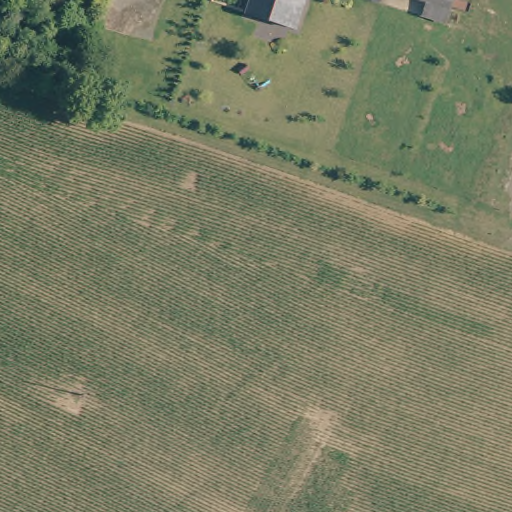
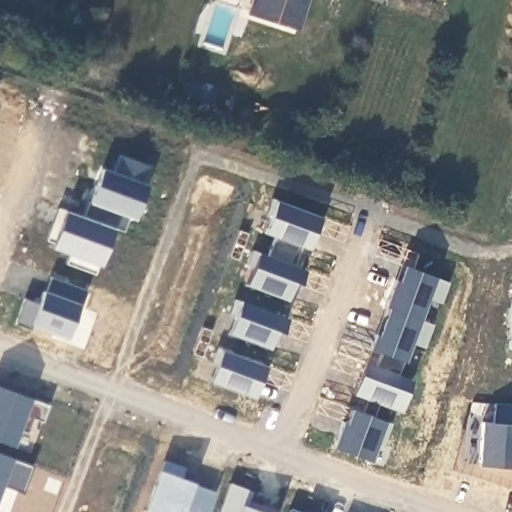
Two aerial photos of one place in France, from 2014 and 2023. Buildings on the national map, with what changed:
unchanged [(296,26),(249,10),(252,0),(305,0),(296,26)]
demolished [(441,2),(434,0),(442,0),(441,2)]
new [(88,200),(92,202),(96,190),(94,190),(101,169),(114,172),(120,155),(150,166),(144,184),(147,185),(135,219),(129,217),(124,232),(83,217),(88,200)]
new [(271,215),(267,214),(272,199),(325,218),(319,234),(313,231),(306,249),(302,247),(294,266),(268,256),(274,237),(265,234),(271,215)]
new [(254,268),(247,265),(253,250),(268,256),(294,266),(305,270),(300,285),(293,282),(287,300),(247,286),(254,268)]
new [(401,266),(401,265),(448,282),(441,303),(427,298),(419,320),(385,307),(395,280),(401,266)]
new [(24,298),(39,304),(43,291),(45,292),(51,276),(88,290),(81,307),(79,306),(67,338),(32,325),(30,330),(15,324),(24,298)]
new [(229,332),(230,333),(236,316),(229,314),(235,299),(287,318),(282,333),(276,331),(269,349),(228,333),(229,332)]
new [(385,308),(385,307),(419,320),(433,325),(424,348),(411,343),(399,375),(376,366),(380,353),(370,349),(375,334),(385,308)]
new [(512,307),(512,349),(509,349),(512,307)]
new [(216,364),(212,362),(217,347),(269,366),(264,382),(258,380),(251,397),(210,382),(216,364)]
new [(365,362),(376,366),(399,375),(412,380),(400,411),(353,393),(365,362)]
new [(43,422),(34,419),(28,433),(18,430),(12,446),(0,442),(0,387),(49,405),(43,422)]
new [(482,422),(494,423),(495,403),(512,404),(512,468),(479,465),(482,422)]
new [(343,422),(346,423),(352,409),(391,423),(383,446),(377,444),(370,461),(369,460),(335,447),(334,448),(333,447),(343,422)]
new [(23,494),(1,485),(0,487),(0,454),(33,466),(23,494)]
new [(184,468),(181,478),(193,483),(192,485),(216,494),(209,512),(145,512),(164,461),(184,468)]
new [(249,501),(260,505),(278,511),(278,512),(219,512),(230,483),(252,491),(249,501)]
new [(301,512),(288,512),(290,507),(301,512)]

